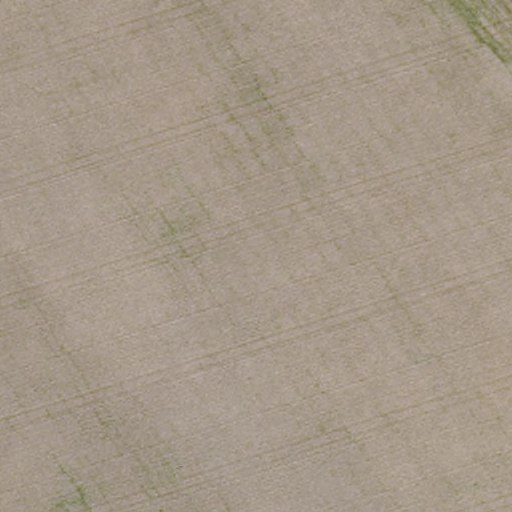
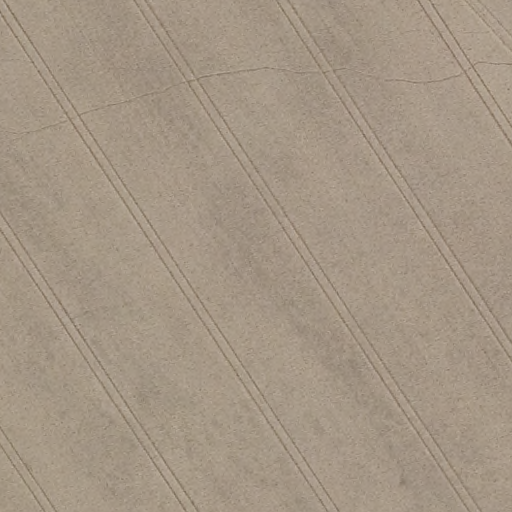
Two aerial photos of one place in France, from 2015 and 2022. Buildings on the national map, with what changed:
[]

